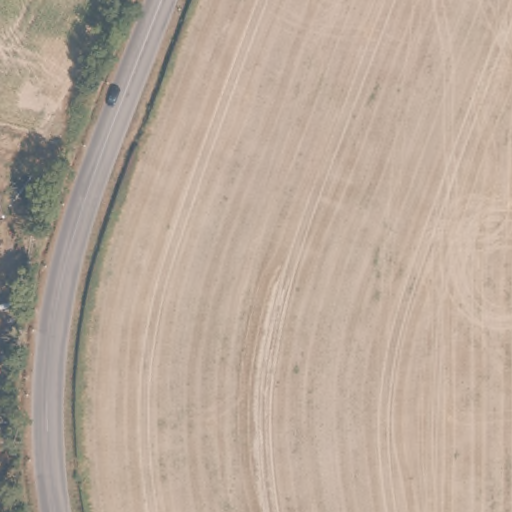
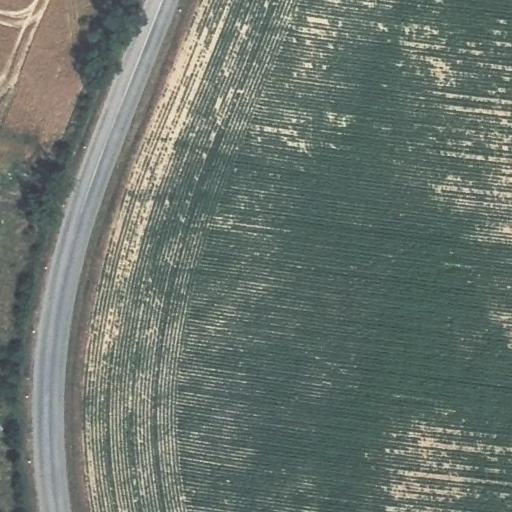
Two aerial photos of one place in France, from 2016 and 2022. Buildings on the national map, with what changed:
[]

